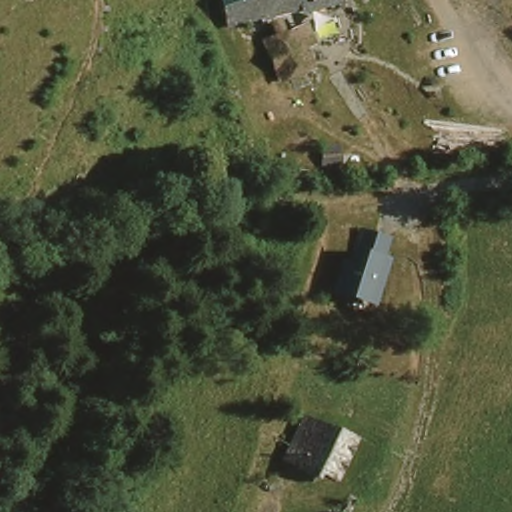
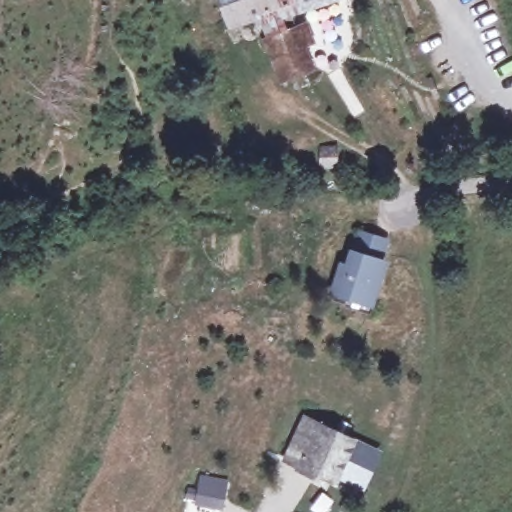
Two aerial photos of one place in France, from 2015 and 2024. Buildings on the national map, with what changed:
unchanged [(302,36),(305,59),(281,63),(274,10),(240,21),(235,10),(225,13),(221,0),(309,0),(284,9),(286,23),(298,19),(312,16),(316,33),(302,36)]
unchanged [(338,145),(340,167),(320,168),(320,146),(338,145)]
unchanged [(375,277),(365,301),(336,289),(345,265),(352,267),(365,232),(375,236),(392,243),(385,262),(380,279),(375,277)]
unchanged [(317,431),(321,424),(352,442),(335,474),(320,466),(315,476),(297,466),(300,459),(287,452),(303,423),(317,431)]
new [(188,489),(198,491),(201,476),(227,481),(221,509),(195,504),(197,500),(187,499),(188,489)]

